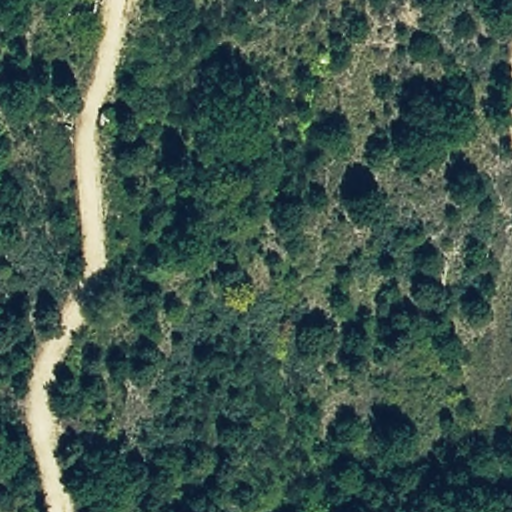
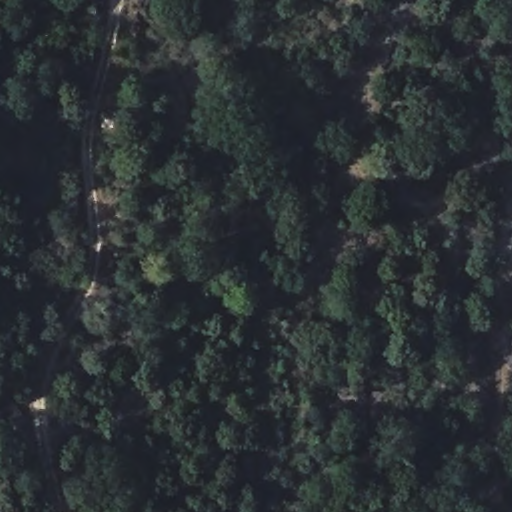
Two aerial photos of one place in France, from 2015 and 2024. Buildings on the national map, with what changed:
unchanged [(121,171),(105,172),(105,139),(119,138),(121,171)]

